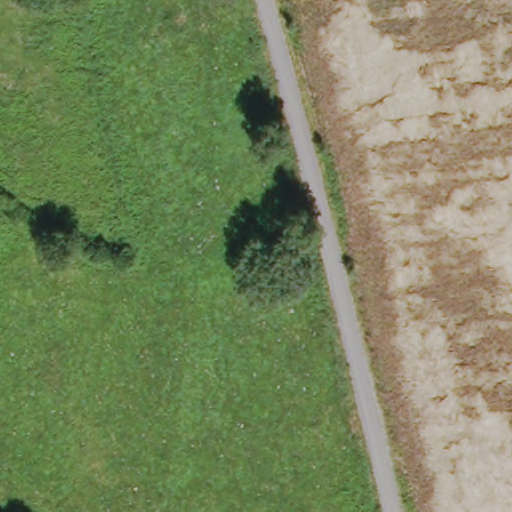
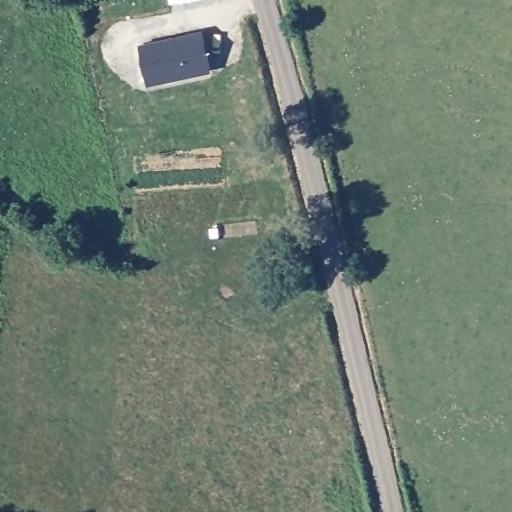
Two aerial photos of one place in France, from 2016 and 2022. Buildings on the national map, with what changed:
new [(202,32),(211,71),(147,86),(140,46),(202,32)]

